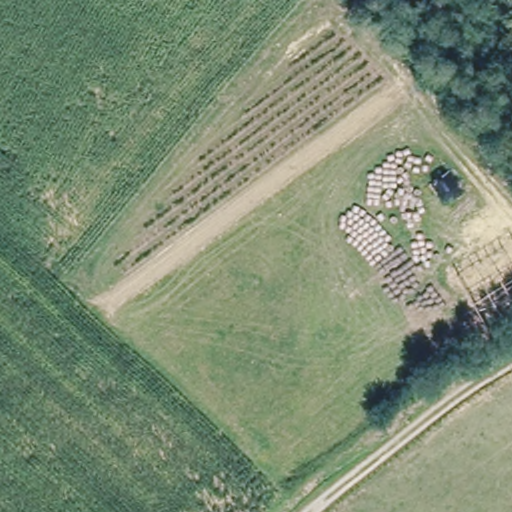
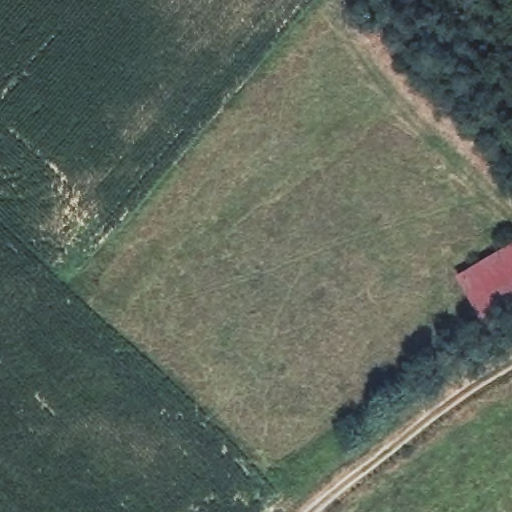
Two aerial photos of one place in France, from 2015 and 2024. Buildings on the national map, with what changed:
new [(487,333),(455,278),(512,243),(512,317),(487,333)]

